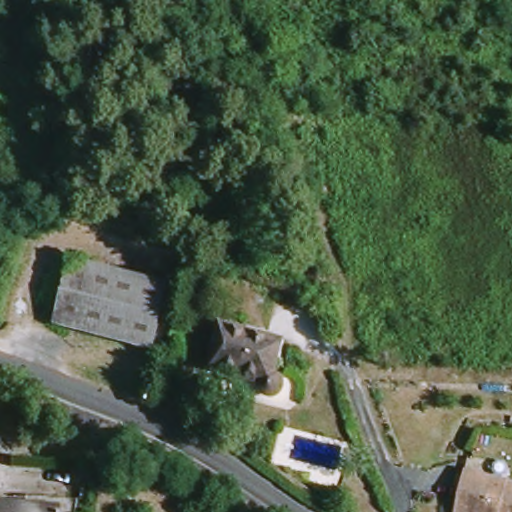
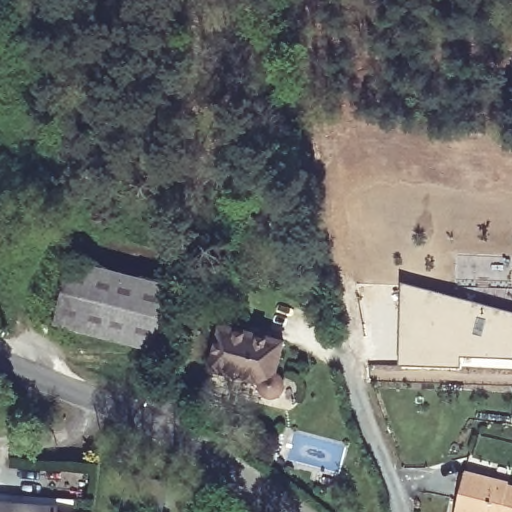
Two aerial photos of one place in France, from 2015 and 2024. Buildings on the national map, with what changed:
unchanged [(155,351),(56,326),(72,262),(170,287),(155,351)]
new [(433,290),(512,310),(512,369),(398,365),(402,283),(433,290)]
unchanged [(279,377),(281,378),(283,381),(285,383),(285,386),(285,389),(284,392),(282,394),(280,396),(277,397),(275,398),(271,398),(269,397),(266,396),(264,394),(262,392),(261,388),(261,386),(262,384),(211,371),(222,327),(285,343),(276,376),(279,377)]
unchanged [(467,473),(510,485),(510,487),(512,488),(512,512),(457,512),(467,473)]
unchanged [(60,508),(59,512),(0,512),(0,503),(25,505),(60,508)]

